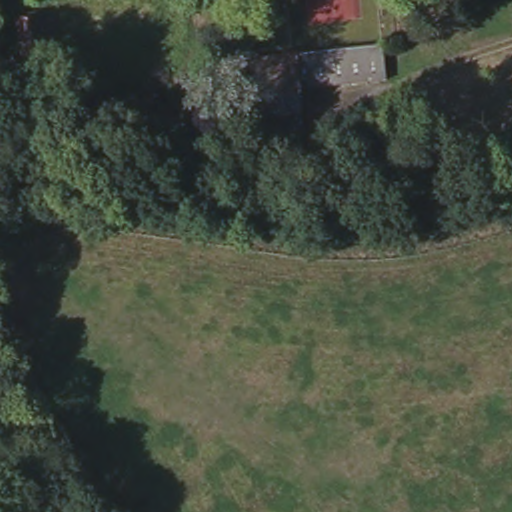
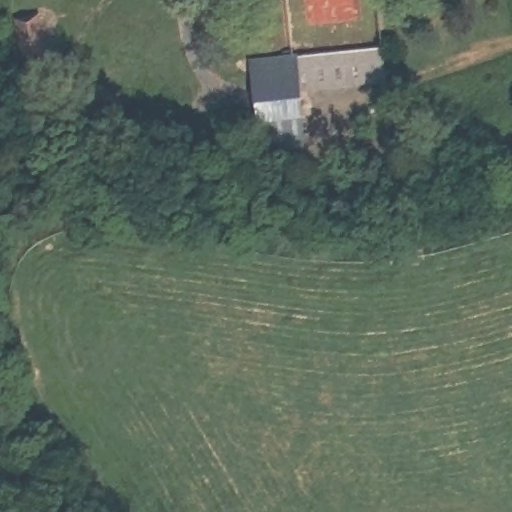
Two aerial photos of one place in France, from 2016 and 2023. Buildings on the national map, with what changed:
unchanged [(52,63),(25,65),(19,19),(45,16),(52,63)]
unchanged [(393,75),(303,82),(304,90),(308,143),(265,149),(257,60),(299,57),(391,49),(393,75)]

